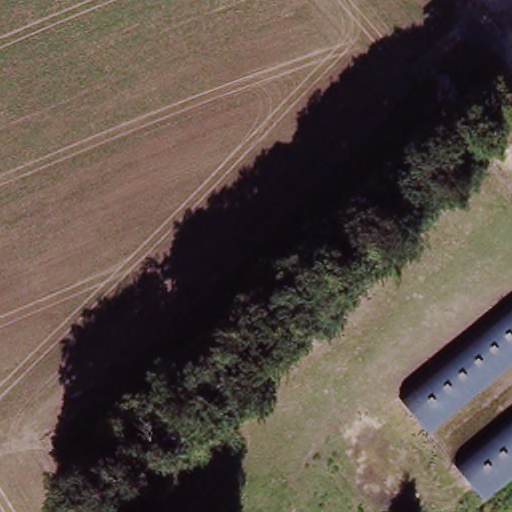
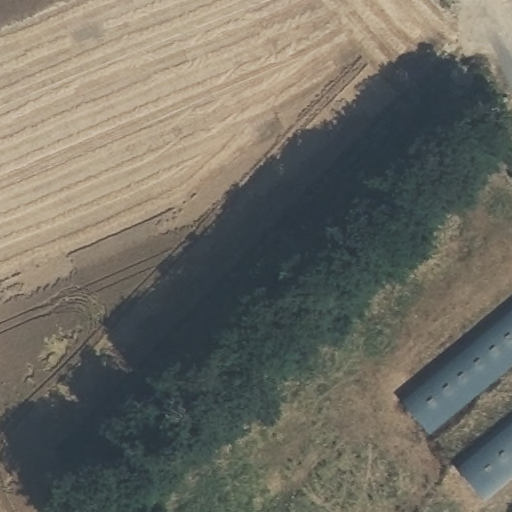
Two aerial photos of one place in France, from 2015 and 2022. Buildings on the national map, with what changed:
unchanged [(398,398),(512,303),(512,361),(427,432),(398,398)]
unchanged [(512,479),(487,499),(457,463),(512,418),(512,479)]

